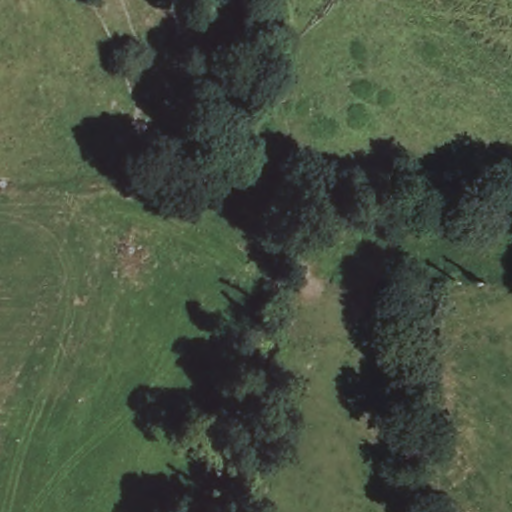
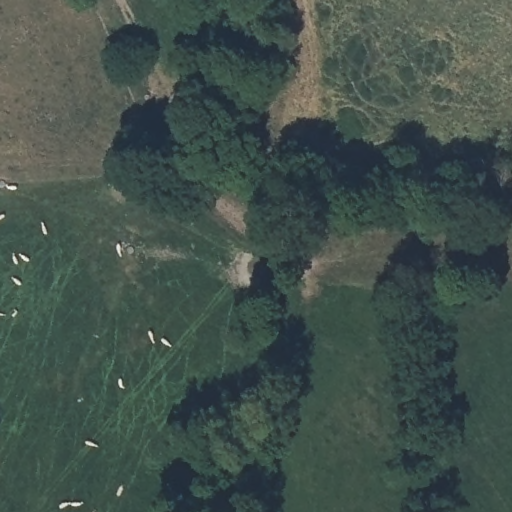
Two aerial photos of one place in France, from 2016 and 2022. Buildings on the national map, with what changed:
[]

